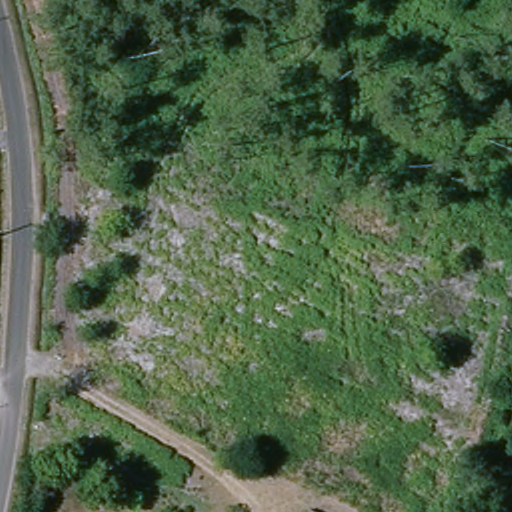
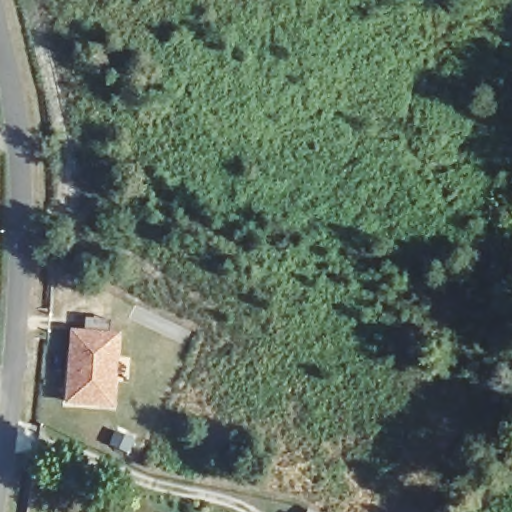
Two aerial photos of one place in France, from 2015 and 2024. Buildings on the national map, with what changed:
new [(66,405),(71,330),(120,333),(115,408),(66,405)]

